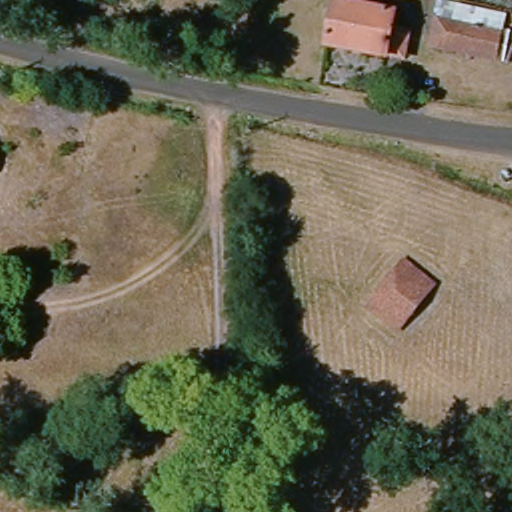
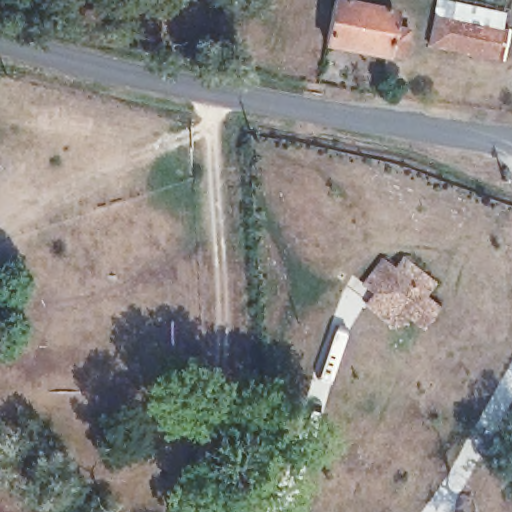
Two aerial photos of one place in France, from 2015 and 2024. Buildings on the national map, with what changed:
unchanged [(320,42),(333,0),(355,0),(362,4),(391,12),(389,22),(408,27),(402,47),(395,67),(373,59),(320,42)]
unchanged [(496,68),(477,64),(427,45),(437,4),(488,21),(507,27),(496,68)]
unchanged [(388,266),(432,286),(421,312),(381,288),(383,282),(388,266)]
unchanged [(381,288),(421,312),(406,336),(366,310),(381,288)]

